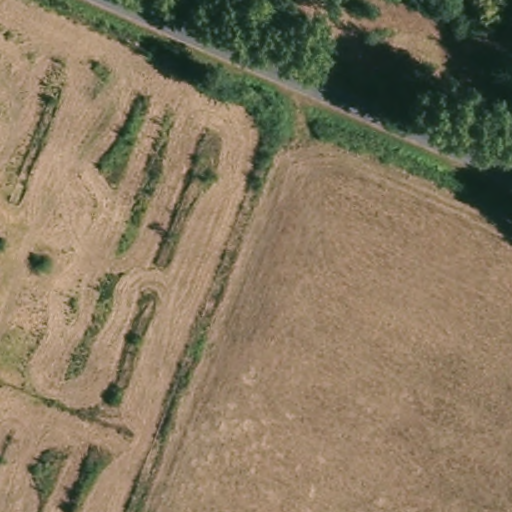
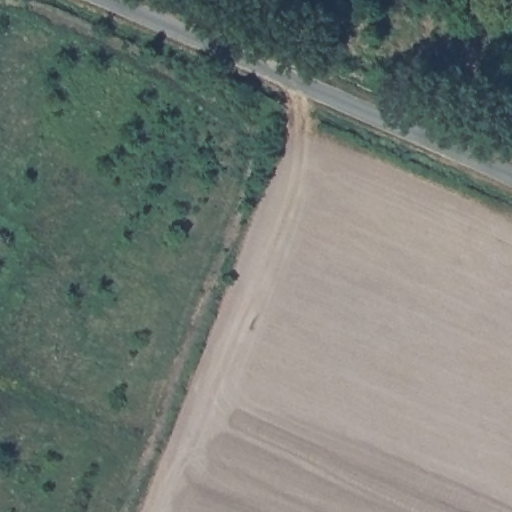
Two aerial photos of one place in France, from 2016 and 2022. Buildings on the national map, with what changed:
[]

